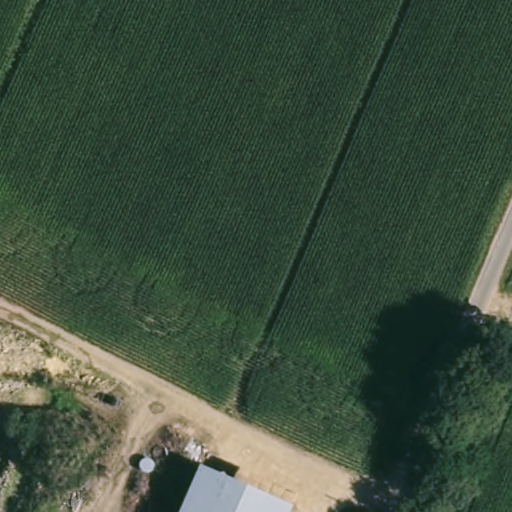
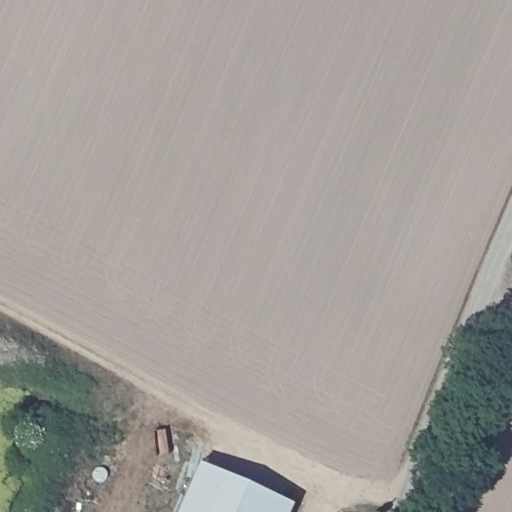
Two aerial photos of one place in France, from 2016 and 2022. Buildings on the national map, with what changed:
unchanged [(294,505),(291,512),(183,512),(202,469),(294,505)]

